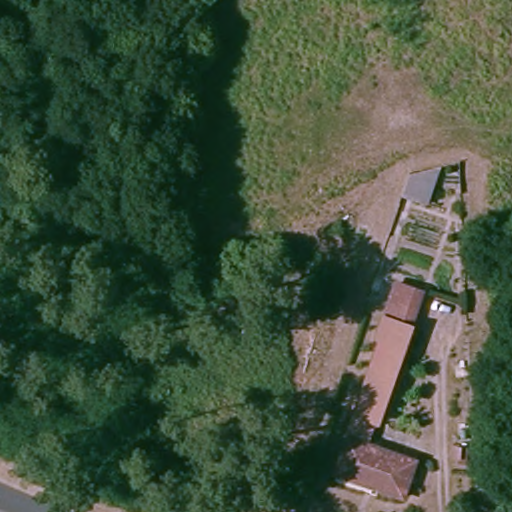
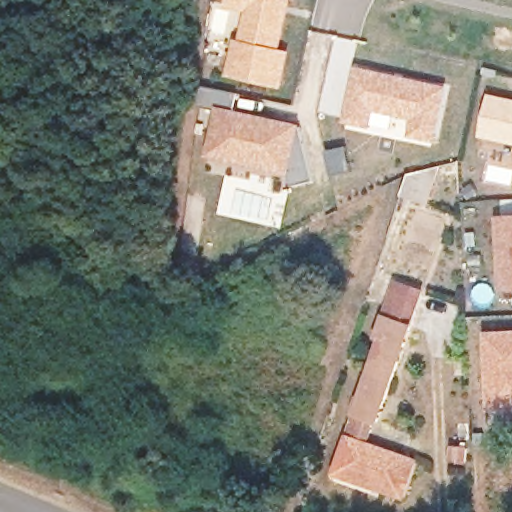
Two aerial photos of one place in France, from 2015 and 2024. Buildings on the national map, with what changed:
new [(290,51),(282,86),(227,74),(235,38),(240,39),(247,10),(229,6),(230,0),(291,0),(281,49),(290,51)]
new [(361,72),(447,91),(436,141),(414,136),(419,119),(374,109),(371,126),(349,121),(361,72)]
new [(210,157),(220,114),(200,109),(204,88),(239,96),(235,116),(302,130),(314,185),(292,189),(289,175),(254,166),(210,157)]
new [(484,139),(492,101),(512,105),(512,145),(484,139)]
unchanged [(439,163),(424,204),(395,198),(404,169),(439,163)]
new [(512,215),(512,292),(501,293),(497,217),(512,215)]
unchanged [(382,343),(378,341),(393,303),(397,291),(423,301),(419,313),(379,425),(375,423),(369,444),(415,463),(402,503),(336,480),(382,343)]
new [(507,423),(506,408),(488,408),(484,337),(506,336),(512,335),(512,422),(507,423)]

